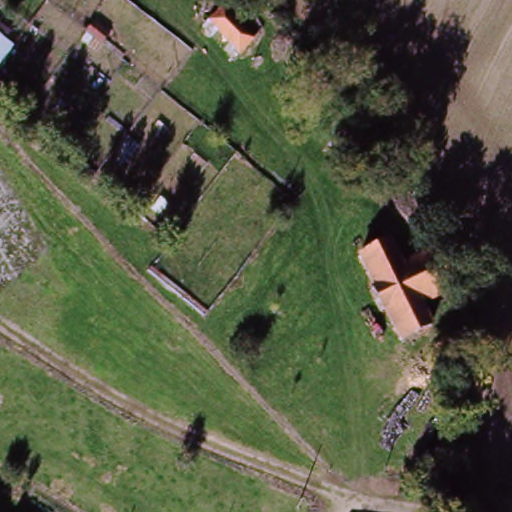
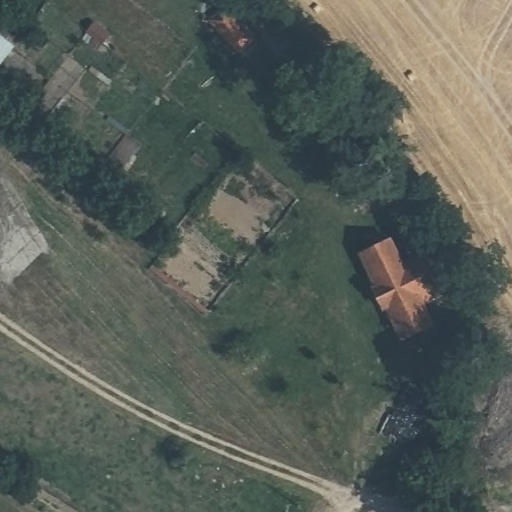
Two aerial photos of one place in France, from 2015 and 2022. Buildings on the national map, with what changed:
unchanged [(248,53),(227,31),(218,22),(231,9),(240,17),(263,40),(248,53)]
unchanged [(12,52),(0,69),(0,43),(12,52)]
unchanged [(431,330),(402,345),(386,313),(382,316),(370,293),(373,291),(358,260),(387,246),(400,267),(421,308),(431,330)]
unchanged [(438,248),(459,288),(421,308),(400,267),(438,248)]

